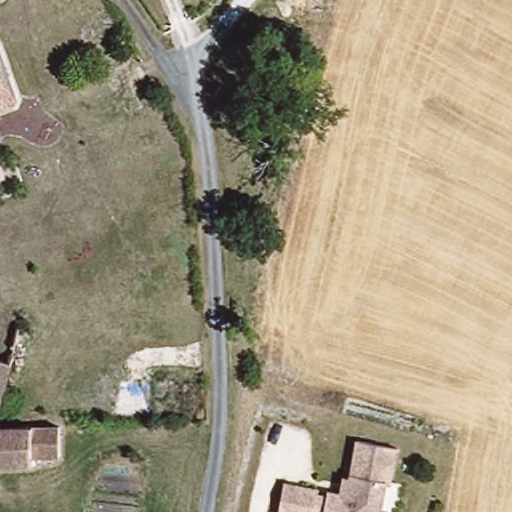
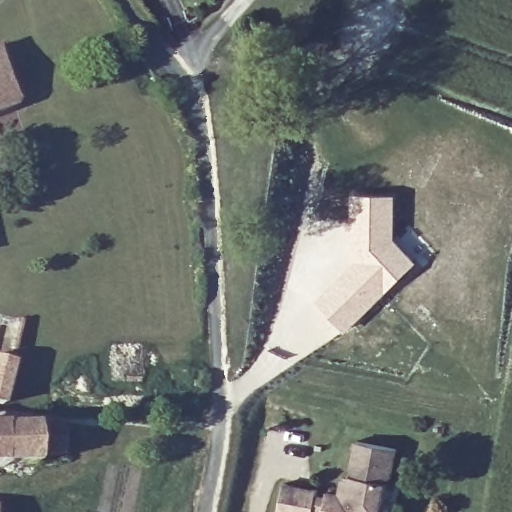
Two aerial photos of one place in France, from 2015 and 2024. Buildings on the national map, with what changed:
unchanged [(18,99),(14,106),(0,111),(0,48),(18,99)]
new [(355,260),(350,255),(348,243),(348,193),(396,194),(397,238),(419,260),(348,331),(316,300),(355,260)]
unchanged [(11,396),(5,395),(2,408),(0,407),(0,360),(12,362),(6,389),(12,391),(11,396)]
unchanged [(22,462),(21,459),(0,461),(0,423),(31,423),(55,423),(55,453),(31,453),(31,462),(22,462)]
unchanged [(277,479),(333,490),(334,476),(343,469),(347,439),(392,447),(387,482),(382,481),(376,511),(383,512),(307,512),(271,512),(277,479)]

